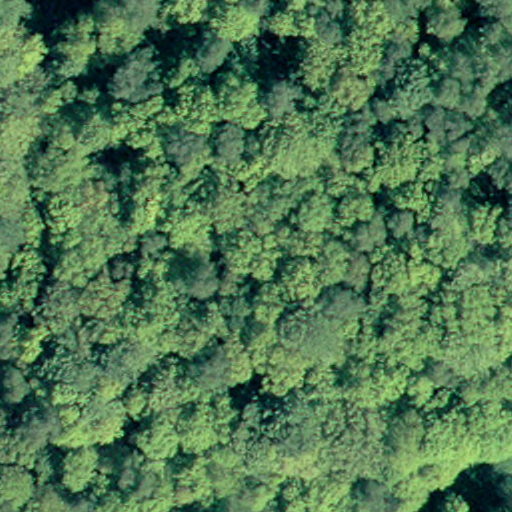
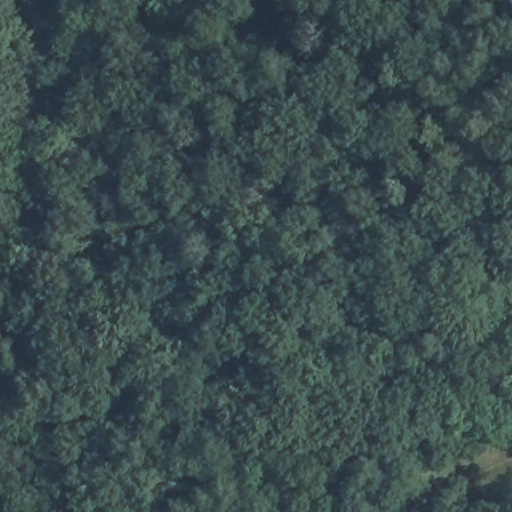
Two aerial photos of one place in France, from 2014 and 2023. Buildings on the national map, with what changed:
[]

